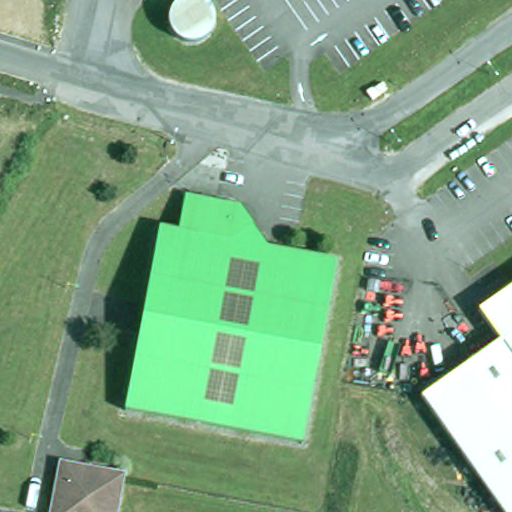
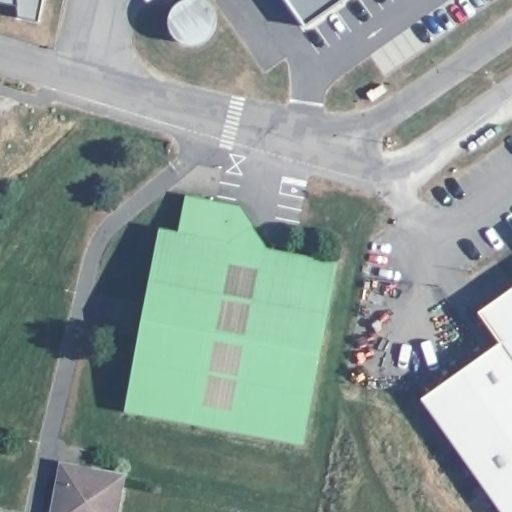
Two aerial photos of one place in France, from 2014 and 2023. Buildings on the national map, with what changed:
new [(17,15),(17,4),(0,1),(0,0),(42,0),(37,21),(17,15)]
unchanged [(140,0),(151,0),(144,5),(140,0)]
new [(288,0),(344,0),(306,26),(288,0)]
unchanged [(375,87),(385,80),(389,85),(374,95),(367,86),(375,87)]
unchanged [(296,447),(119,410),(156,230),(175,234),(183,197),(237,207),(269,254),(313,262),(332,265),(329,283),(296,447)]
unchanged [(425,396),(502,343),(482,313),(512,293),(512,512),(505,512),(425,396)]
unchanged [(116,512),(55,512),(65,465),(123,478),(116,512)]

